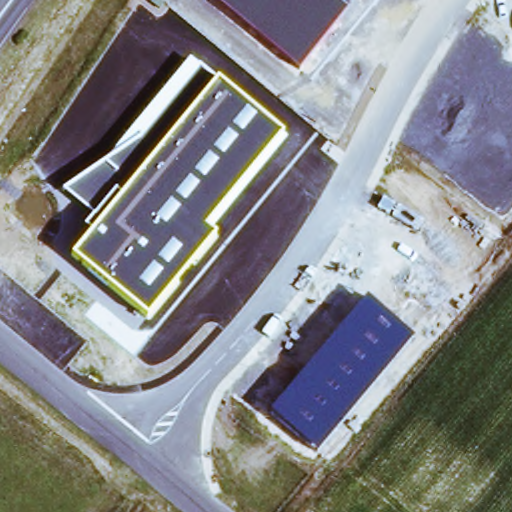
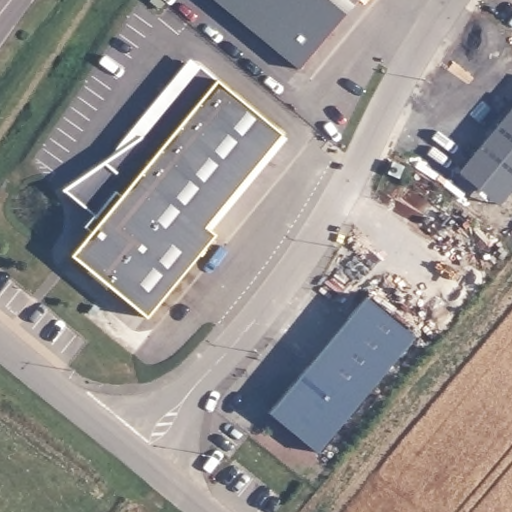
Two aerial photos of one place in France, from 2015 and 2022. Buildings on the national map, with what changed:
unchanged [(215,0),(356,0),(299,69),(215,0)]
unchanged [(90,232),(84,227),(94,215),(62,190),(110,158),(189,59),(281,134),(203,227),(213,235),(146,317),(71,255),(90,232)]
new [(512,97),(512,104),(509,101),(512,97)]
new [(470,158),(512,108),(512,186),(509,190),(470,158)]
new [(470,158),(509,190),(495,207),(457,174),(470,158)]
unchanged [(365,299),(412,337),(317,450),(270,412),(365,299)]

